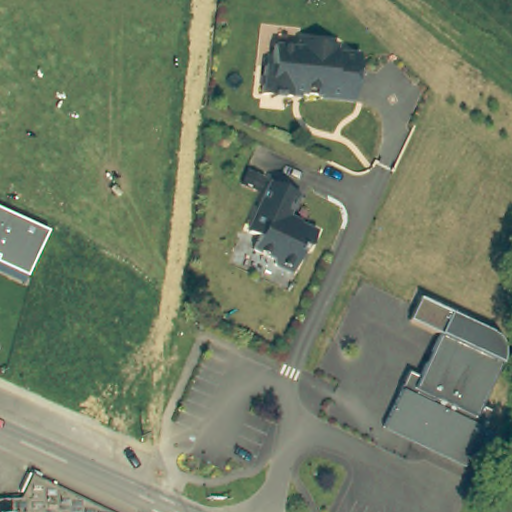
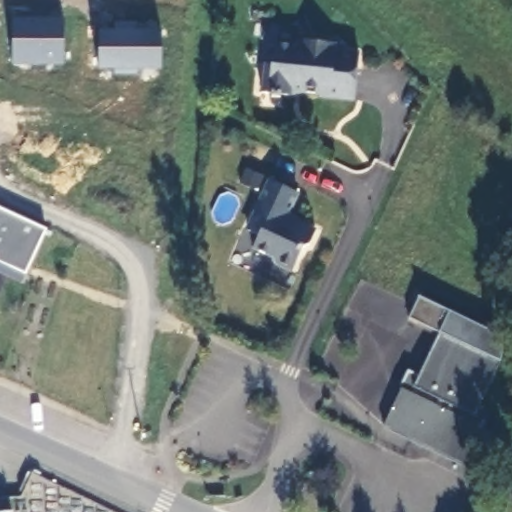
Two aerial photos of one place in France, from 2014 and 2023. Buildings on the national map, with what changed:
new [(11,22),(41,22),(41,20),(63,20),(63,64),(11,63),(11,22)]
new [(98,32),(114,32),(114,24),(135,24),(135,32),(160,33),(160,69),(135,69),(135,74),(113,74),(114,69),(97,68),(98,32)]
unchanged [(291,94),(281,93),(281,96),(272,95),(272,92),(263,91),(266,62),(272,63),(274,42),(297,45),(298,38),(337,42),(336,49),(360,51),(355,99),(321,95),(321,92),(302,90),(292,89),(291,94)]
unchanged [(287,221),(299,226),(303,225),(317,232),(310,247),(303,248),(292,272),(274,264),(272,257),(253,249),(259,236),(249,231),(259,209),(257,207),(263,193),(239,181),(245,169),(269,180),(299,194),(287,221)]
unchanged [(26,274),(21,282),(0,272),(0,210),(46,232),(26,274)]
unchanged [(434,443),(417,436),(388,423),(396,406),(404,386),(402,385),(410,366),(421,371),(440,328),(409,315),(418,292),(490,323),(491,324),(493,325),(494,326),(495,327),(497,328),(499,330),(500,332),(501,333),(501,335),(502,337),(503,339),(504,342),(504,345),(504,347),(503,350),(503,351),(503,352),(483,398),(494,403),(485,422),(495,427),(483,453),(474,450),(472,454),(470,458),(434,443)]

